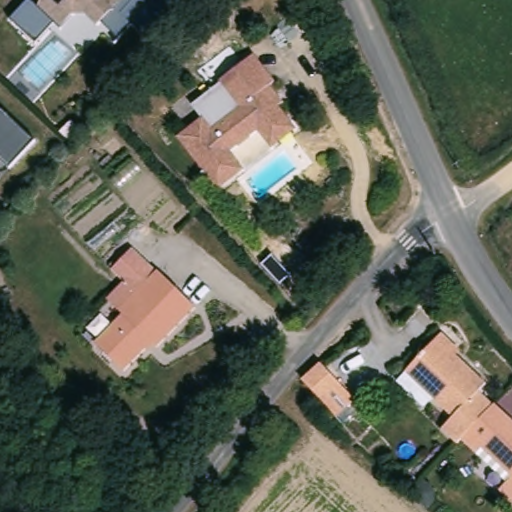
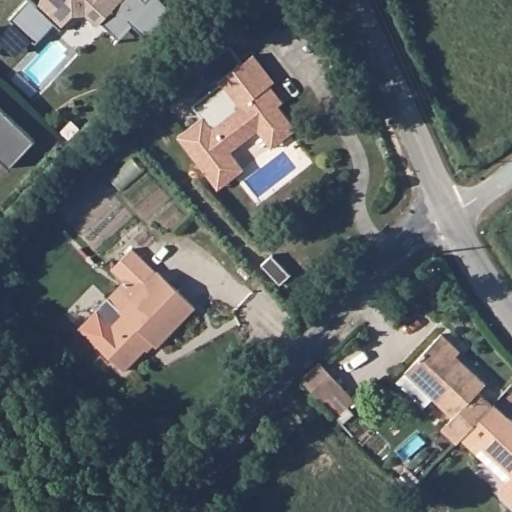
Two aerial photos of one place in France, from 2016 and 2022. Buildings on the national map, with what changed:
unchanged [(104,19),(97,23),(85,11),(74,12),(59,26),(55,23),(36,42),(11,17),(28,0),(33,0),(39,5),(41,0),(159,0),(121,33),(104,19)]
unchanged [(217,191),(211,183),(177,136),(202,118),(192,105),(224,83),(222,81),(257,54),(277,81),(272,85),(281,97),(276,100),(289,120),(297,131),(272,150),(264,139),(258,131),(232,152),(239,163),(245,171),(217,191)]
unchanged [(17,170),(0,153),(0,101),(45,143),(17,170)]
unchanged [(120,309),(107,298),(125,281),(112,268),(132,248),(159,270),(120,309)]
unchanged [(124,314),(120,309),(159,270),(196,308),(157,346),(152,342),(124,370),(95,342),(124,314)]
unchanged [(452,342),(447,348),(485,383),(478,390),(453,416),(402,369),(440,331),(452,342)]
unchanged [(318,395),(335,376),(357,397),(341,416),(318,395)]
unchanged [(508,418),(480,447),(472,454),(442,427),(453,416),(478,390),(508,418)]
unchanged [(498,490),(511,477),(480,447),(508,418),(512,422),(512,503),(498,490)]

